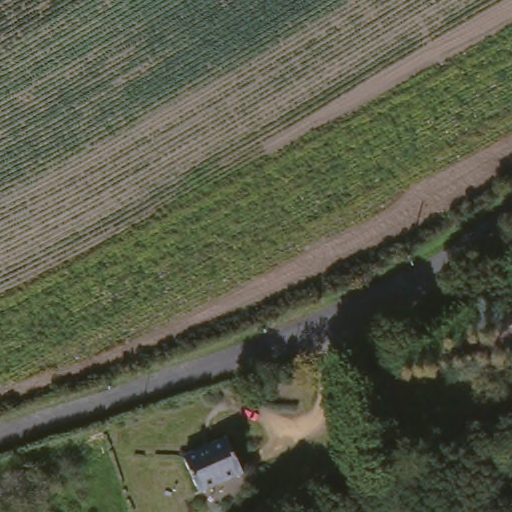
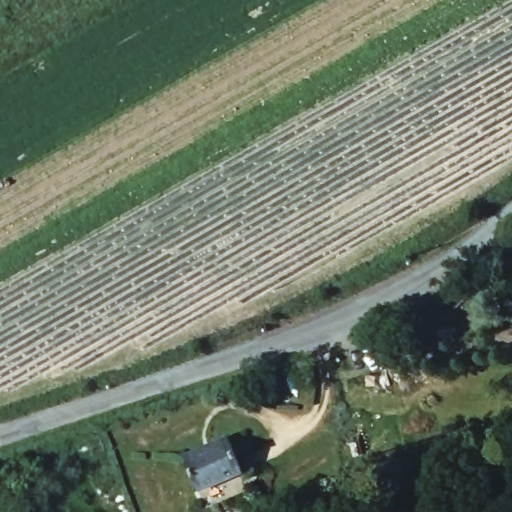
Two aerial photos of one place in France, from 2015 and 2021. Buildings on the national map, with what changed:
unchanged [(231,434),(246,471),(198,492),(184,459),(182,451),(204,441),(231,434)]

